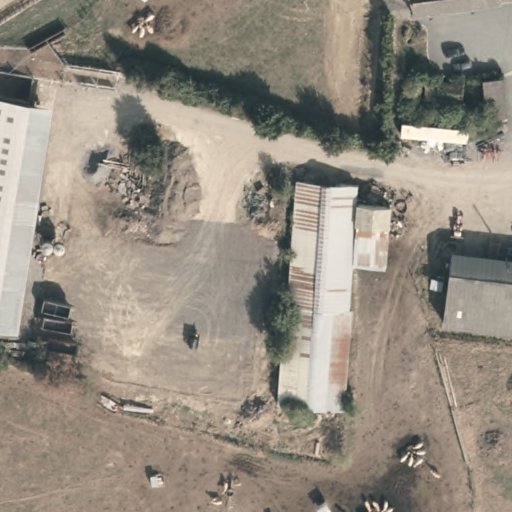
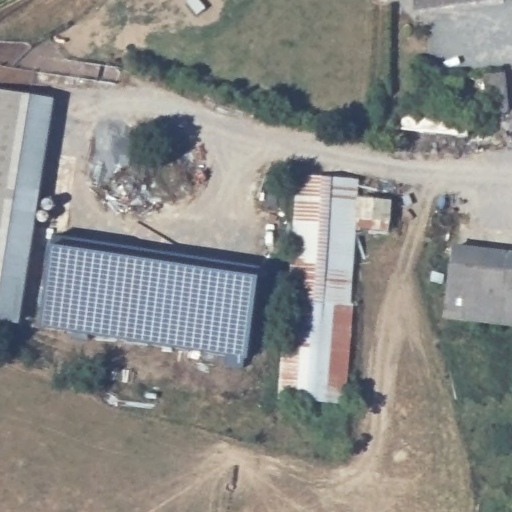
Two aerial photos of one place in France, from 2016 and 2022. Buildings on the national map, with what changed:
unchanged [(415,9),(414,0),(483,0),(415,9)]
unchanged [(509,111),(489,113),(486,75),(506,72),(509,111)]
unchanged [(464,95),(440,93),(429,93),(429,77),(441,77),(465,79),(464,95)]
unchanged [(0,320),(0,91),(55,95),(35,249),(23,323),(0,320)]
unchanged [(358,198),(354,254),(351,302),(353,305),(346,404),(281,399),(287,299),(290,299),(298,176),(341,178),(359,179),(358,198)]
unchanged [(354,254),(358,198),(392,199),(390,236),(388,256),(363,255),(354,254)]
new [(53,237),(262,270),(248,361),(40,327),(53,237)]
demolished [(131,360),(65,351),(79,252),(144,261),(131,360)]
unchanged [(512,265),(512,338),(445,329),(454,257),(512,265)]

